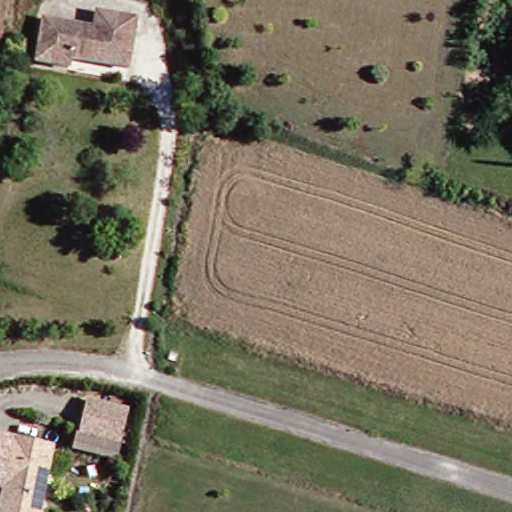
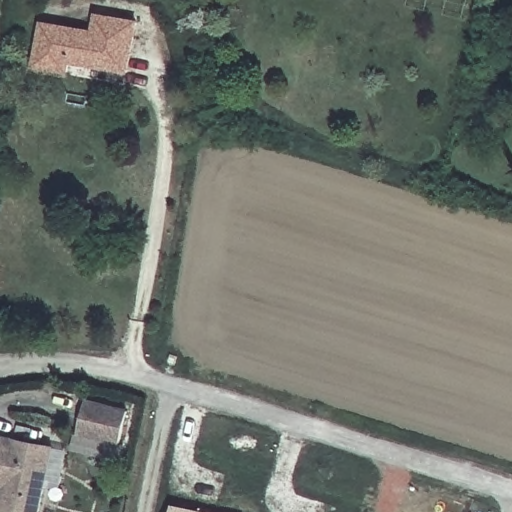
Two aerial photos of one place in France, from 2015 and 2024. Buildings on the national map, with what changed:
unchanged [(75,62),(73,72),(40,66),(47,23),(96,33),(99,16),(139,24),(136,44),(130,73),(119,71),(75,62)]
unchanged [(72,454),(74,439),(80,407),(122,415),(117,447),(114,462),(72,454)]
unchanged [(2,491),(0,491),(0,441),(40,449),(49,451),(46,469),(39,512),(0,512),(0,506),(2,491)]
new [(172,504),(210,512),(171,512),(172,504)]

